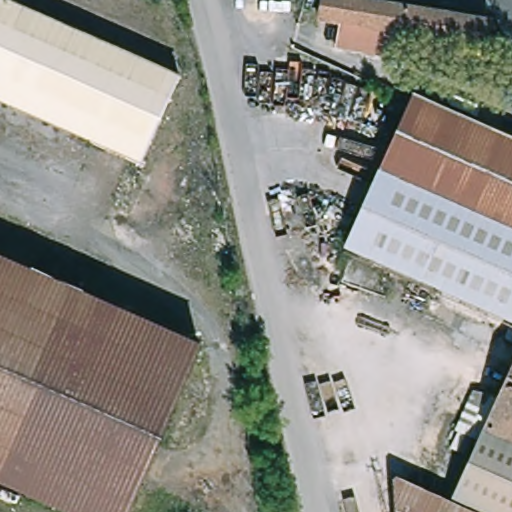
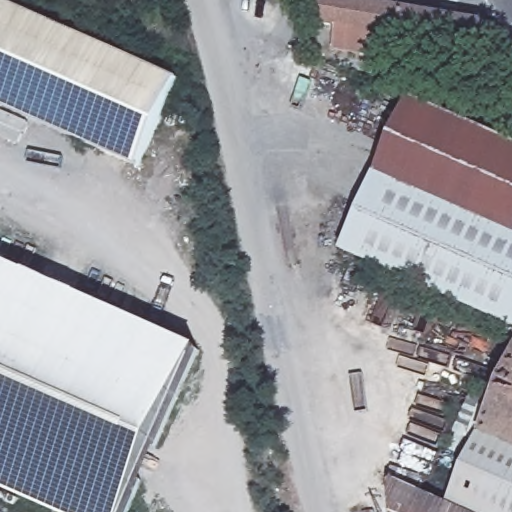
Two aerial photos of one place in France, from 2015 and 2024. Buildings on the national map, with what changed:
unchanged [(489,41),(499,44),(497,54),(459,48),(398,38),(395,54),(394,61),(335,51),(339,26),(320,24),(323,0),(364,0),(403,6),(492,21),(489,41)]
unchanged [(135,159),(0,99),(0,5),(170,80),(135,159)]
unchanged [(459,48),(456,64),(395,54),(398,38),(459,48)]
unchanged [(345,250),(413,98),(512,141),(512,323),(345,250)]
unchanged [(85,299),(200,349),(128,512),(62,512),(0,485),(0,259),(39,276),(85,299)]
unchanged [(450,503),(494,402),(512,360),(512,512),(470,512),(450,503)]
unchanged [(430,494),(475,393),(494,402),(450,503),(430,494)]
unchanged [(470,512),(393,512),(390,477),(430,494),(450,503),(470,512)]

